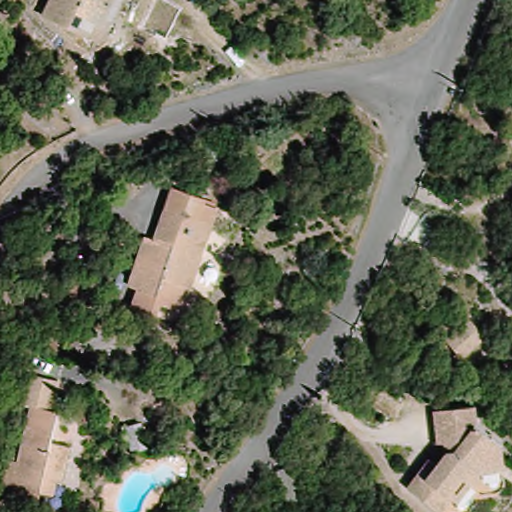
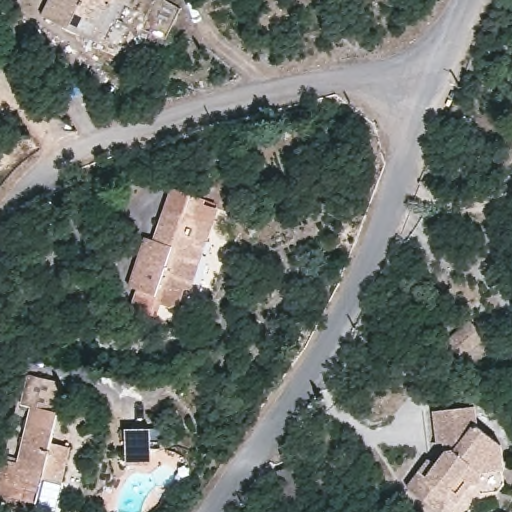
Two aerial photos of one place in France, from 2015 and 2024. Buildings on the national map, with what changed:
unchanged [(38,21),(46,0),(123,0),(106,42),(38,21)]
unchanged [(130,301),(150,252),(162,254),(183,203),(216,215),(212,232),(220,233),(193,302),(168,298),(163,312),(130,301)]
unchanged [(409,347),(435,321),(459,345),(437,372),(409,347)]
unchanged [(12,507),(5,466),(26,460),(16,406),(3,408),(0,378),(36,374),(39,394),(53,395),(61,432),(78,432),(81,458),(62,462),(61,489),(37,492),(33,504),(12,507)]
unchanged [(403,461),(422,472),(443,455),(439,438),(423,436),(420,411),(469,402),(488,435),(497,436),(503,484),(485,495),(471,491),(457,512),(425,512),(385,482),(403,461)]

